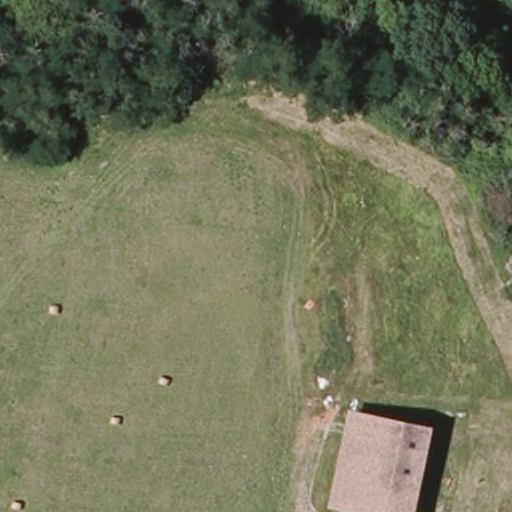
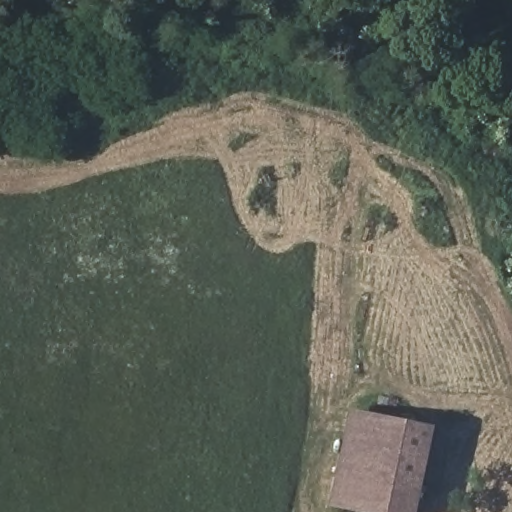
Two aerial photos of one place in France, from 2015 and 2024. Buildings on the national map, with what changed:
unchanged [(422,492),(374,481),(367,511),(336,503),(350,444),(357,416),(386,423),(435,434),(422,492)]
unchanged [(422,492),(417,512),(372,512),(367,511),(374,481),(422,492)]

